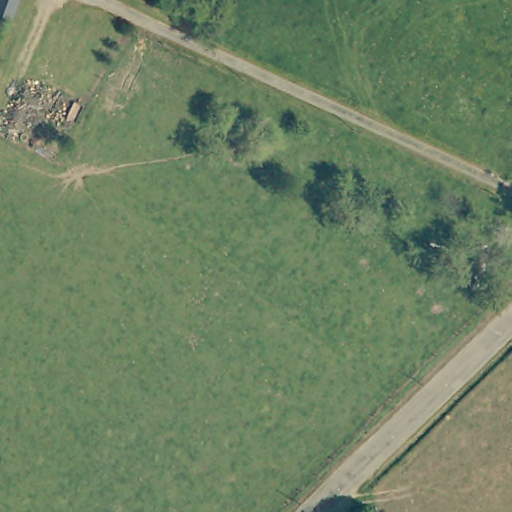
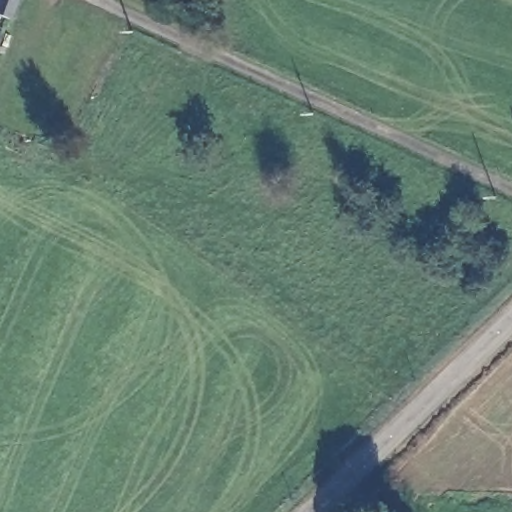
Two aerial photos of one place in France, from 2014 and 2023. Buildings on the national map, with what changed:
unchanged [(5,16),(0,14),(0,0),(11,0),(5,16)]

